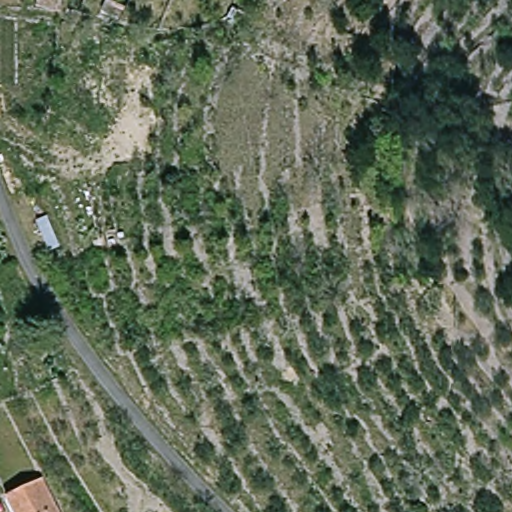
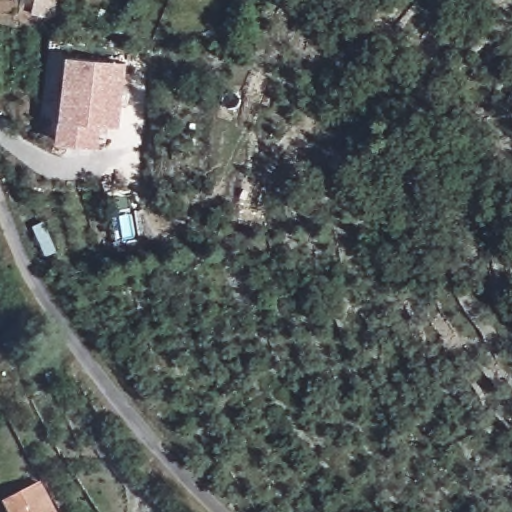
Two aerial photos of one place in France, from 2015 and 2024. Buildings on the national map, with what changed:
unchanged [(34,2),(35,0),(50,0),(47,7),(34,2)]
new [(122,126),(104,125),(103,146),(60,143),(69,58),(128,63),(122,126)]
unchanged [(6,512),(1,502),(43,481),(60,512),(6,512)]

